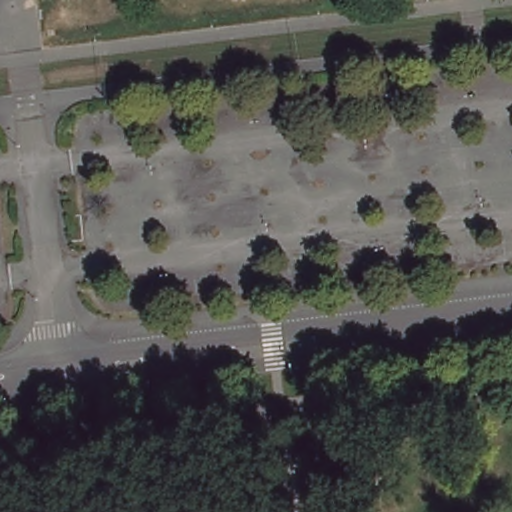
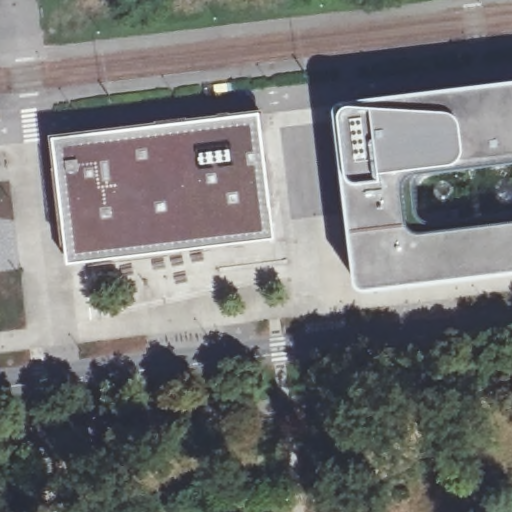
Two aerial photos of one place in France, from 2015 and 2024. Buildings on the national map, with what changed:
new [(340,112),(344,107),(347,104),(512,84),(512,163),(420,174),(414,177),(409,181),(406,187),(410,223),(412,230),(417,232),(422,234),(512,223),(512,275),(367,292),(364,291),(360,287),(340,112)]
new [(55,139),(262,114),(277,241),(70,266),(55,139)]

